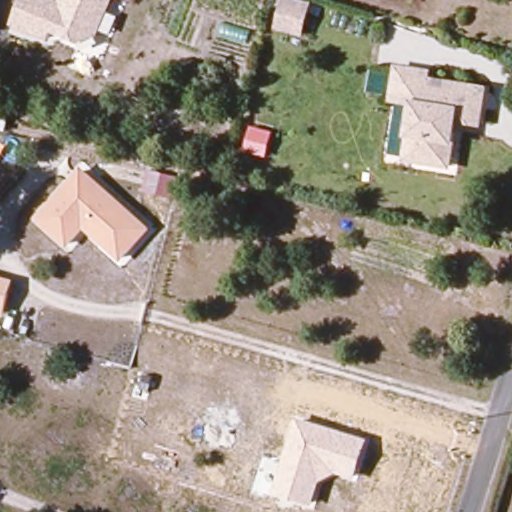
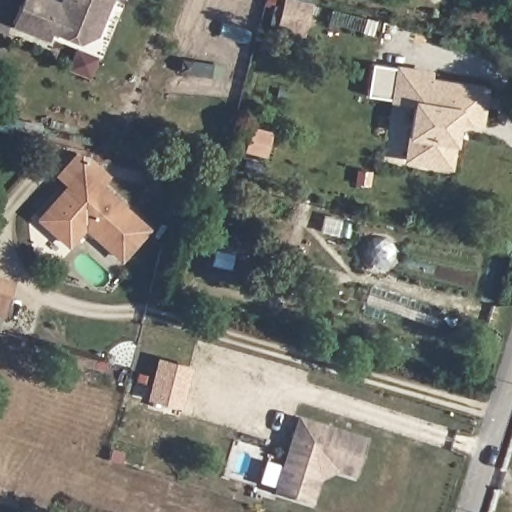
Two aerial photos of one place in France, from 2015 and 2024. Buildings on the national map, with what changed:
unchanged [(90,36),(72,44),(59,37),(56,32),(50,30),(44,40),(7,25),(18,0),(38,0),(57,8),(60,0),(106,0),(90,36)]
unchanged [(313,1),(305,36),(276,31),(282,0),(305,0),(313,1)]
unchanged [(452,164),(410,157),(420,101),(397,97),(402,65),(433,70),(432,77),(490,86),(483,122),(460,117),(457,131),(452,164)]
unchanged [(80,169),(150,228),(122,262),(87,232),(69,248),(36,219),(80,169)]
unchanged [(0,315),(0,278),(14,281),(4,315),(0,315)]
new [(157,358),(187,367),(178,406),(146,397),(157,358)]
unchanged [(357,479),(338,472),(322,482),(313,506),(276,495),(300,417),(368,438),(357,479)]

